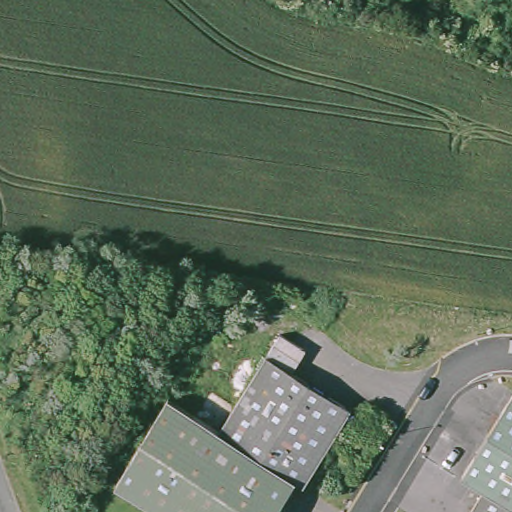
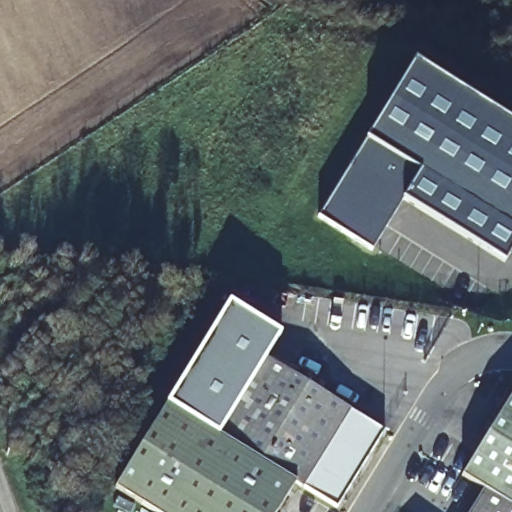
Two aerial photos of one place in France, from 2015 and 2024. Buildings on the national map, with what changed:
new [(512,242),(503,257),(401,196),(370,246),(322,214),(417,61),(512,121),(512,242)]
new [(225,298),(276,330),(261,352),(214,428),(163,397),(225,298)]
unchanged [(298,481),(292,477),(271,512),(159,512),(110,483),(163,397),(214,428),(261,352),(346,404),(298,481)]
unchanged [(457,470),(509,384),(512,386),(512,512),(460,512),(478,482),(457,470)]
new [(383,429),(336,506),(303,486),(351,409),(383,429)]

